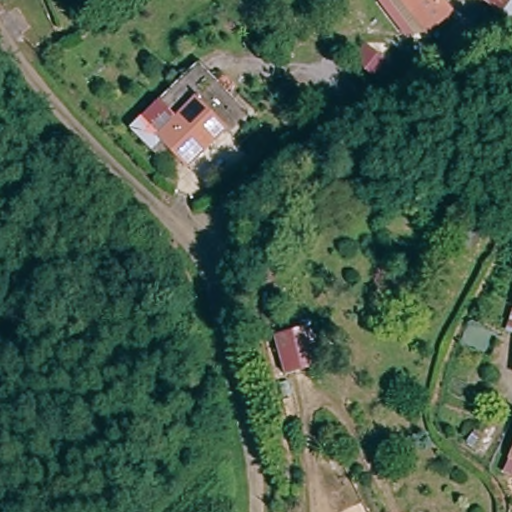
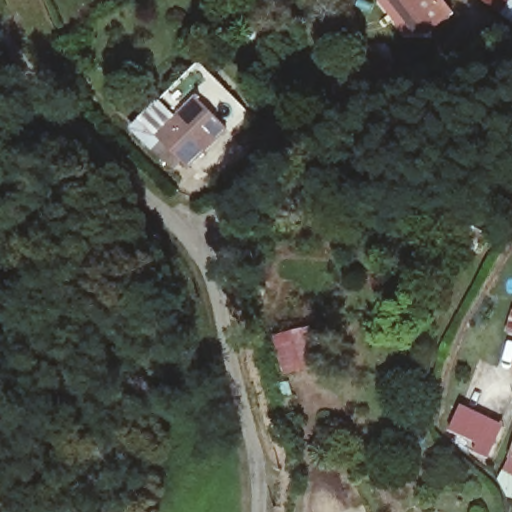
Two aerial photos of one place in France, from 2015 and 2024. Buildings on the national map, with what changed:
unchanged [(447,18),(420,34),(400,0),(436,0),(447,18)]
unchanged [(490,0),(512,0),(512,17),(501,8),(490,0)]
unchanged [(123,130),(131,122),(194,60),(245,111),(184,173),(175,165),(164,174),(123,130)]
unchanged [(323,378),(289,388),(278,350),(312,340),(323,378)]
new [(478,445),(449,430),(463,403),(506,426),(488,460),(475,452),(478,445)]
unchanged [(504,463),(512,442),(512,466),(504,463)]

